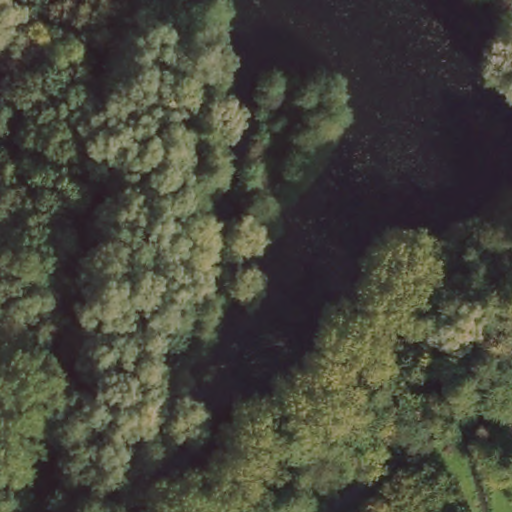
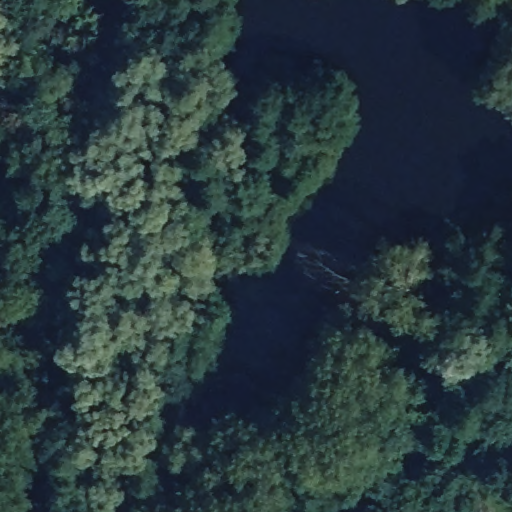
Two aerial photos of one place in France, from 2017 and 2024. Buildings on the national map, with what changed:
unchanged [(459,511),(458,512),(423,512),(442,493),(459,511)]

